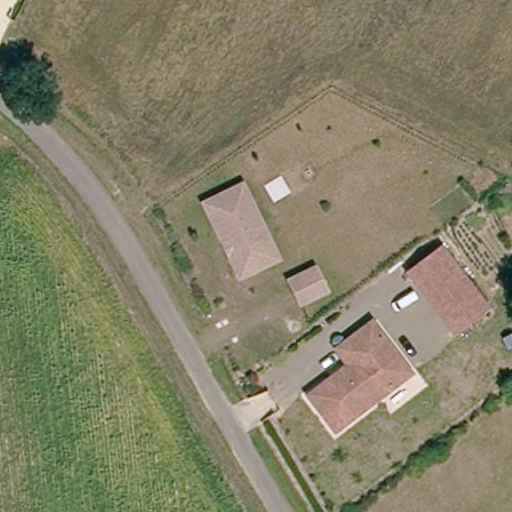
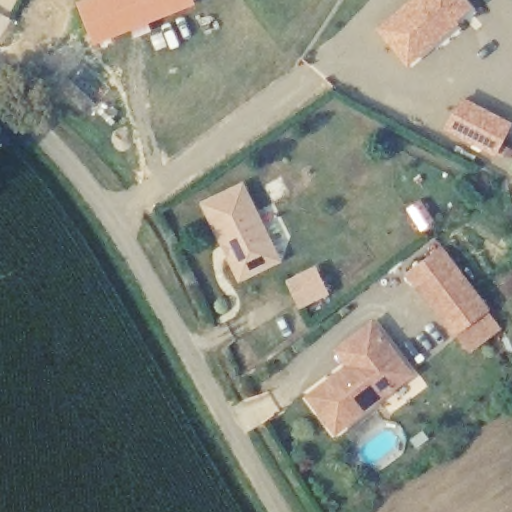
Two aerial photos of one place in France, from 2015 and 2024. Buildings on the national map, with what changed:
new [(96,0),(192,0),(193,3),(110,35),(96,0)]
new [(473,9),(407,68),(375,28),(408,0),(466,0),(473,9)]
new [(512,122),(495,157),(445,132),(461,98),(512,122)]
unchanged [(265,266),(248,277),(210,205),(234,189),(262,242),(274,261),(265,266)]
unchanged [(487,308),(454,332),(410,271),(441,247),(487,308)]
unchanged [(332,290),(305,305),(293,282),(320,267),(332,290)]
unchanged [(335,430),(310,393),(350,363),(338,348),(372,321),(384,337),(410,372),(335,430)]

